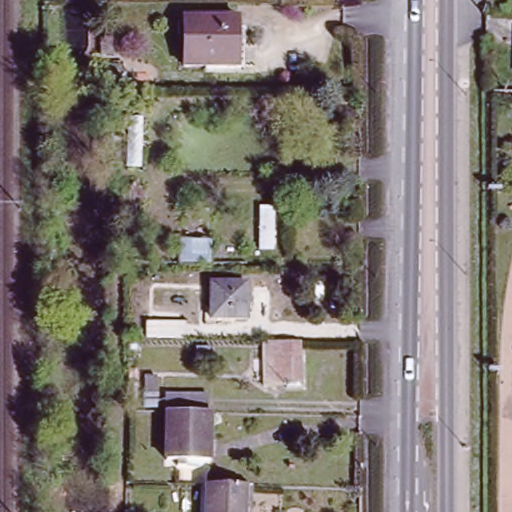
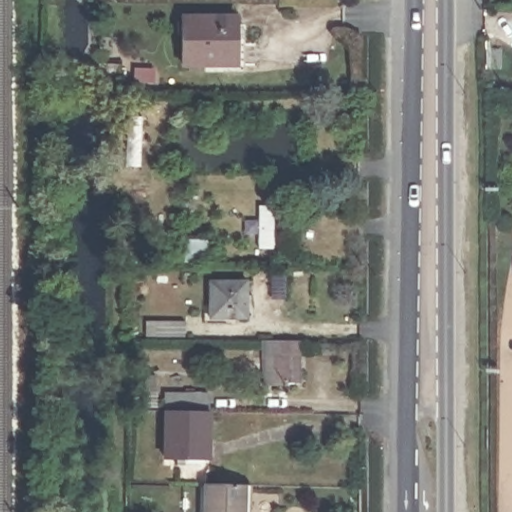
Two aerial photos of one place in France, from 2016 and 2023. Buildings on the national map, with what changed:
unchanged [(237,15),(239,64),(185,65),(184,16),(237,15)]
unchanged [(116,40),(116,57),(106,57),(105,39),(116,40)]
unchanged [(125,66),(125,83),(104,83),(104,66),(125,66)]
unchanged [(251,283),(252,321),(216,322),(215,283),(251,283)]
unchanged [(177,322),(177,338),(149,338),(149,322),(177,322)]
unchanged [(296,336),(297,382),(263,382),(263,336),(296,336)]
unchanged [(155,373),(155,387),(143,387),(143,373),(155,373)]
unchanged [(206,391),(206,405),(164,405),(164,390),(206,391)]
unchanged [(207,408),(207,456),(170,457),(170,408),(207,408)]
unchanged [(249,482),(248,512),(207,512),(209,481),(249,482)]

